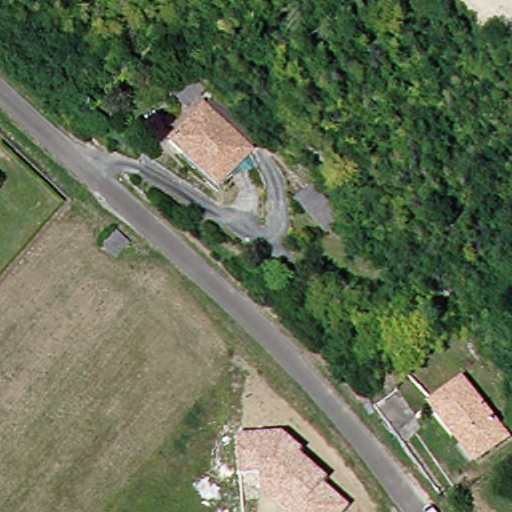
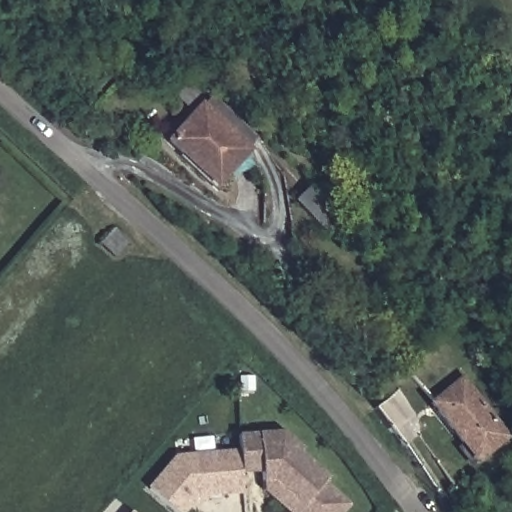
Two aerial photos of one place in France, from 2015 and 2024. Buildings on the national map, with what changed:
unchanged [(205,87),(188,104),(179,95),(196,78),(205,87)]
unchanged [(252,149),(218,186),(170,141),(204,105),(250,147),(252,149)]
unchanged [(329,235),(296,200),(314,183),(347,218),(329,235)]
unchanged [(116,256),(103,243),(116,229),(130,242),(116,256)]
unchanged [(509,436),(478,461),(433,403),(464,378),(509,436)]
unchanged [(377,407),(400,390),(429,428),(405,445),(377,407)]
unchanged [(262,473),(240,475),(240,434),(284,431),(305,450),(301,453),(329,477),(325,481),(351,505),(344,512),(286,512),(262,491),(262,473)]
new [(175,455),(240,449),(240,475),(243,494),(195,499),(184,512),(175,512),(148,488),(175,455)]
new [(132,512),(131,512),(131,511),(132,512)]

